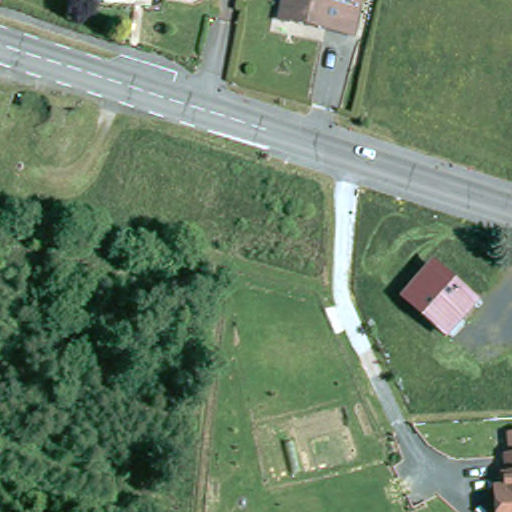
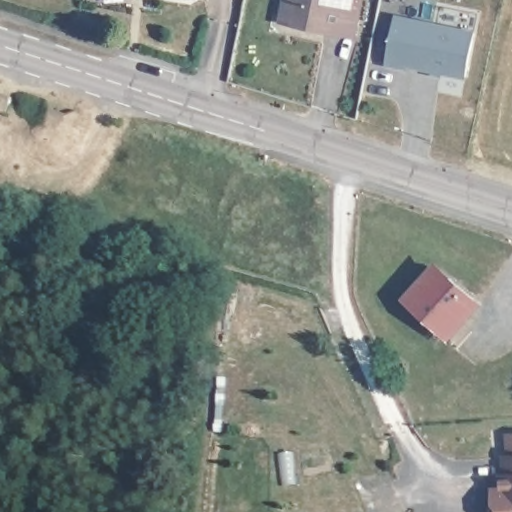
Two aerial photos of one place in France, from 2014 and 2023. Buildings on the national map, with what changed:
unchanged [(356,36),(287,20),(291,0),(364,0),(356,36)]
new [(394,15),(475,29),(466,79),(386,65),(394,15)]
unchanged [(483,297),(454,333),(411,296),(438,260),(483,297)]
unchanged [(505,512),(507,489),(501,487),(505,456),(510,457),(512,440),(512,512),(505,512)]

